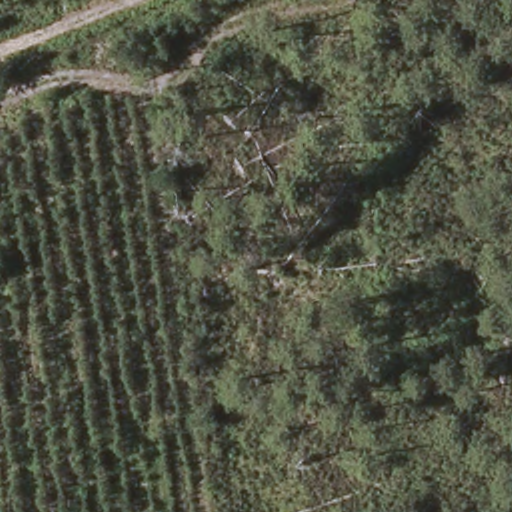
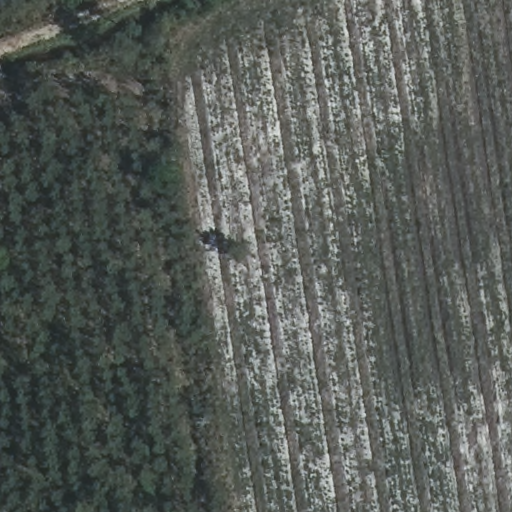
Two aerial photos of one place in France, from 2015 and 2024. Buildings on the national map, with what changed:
[]

